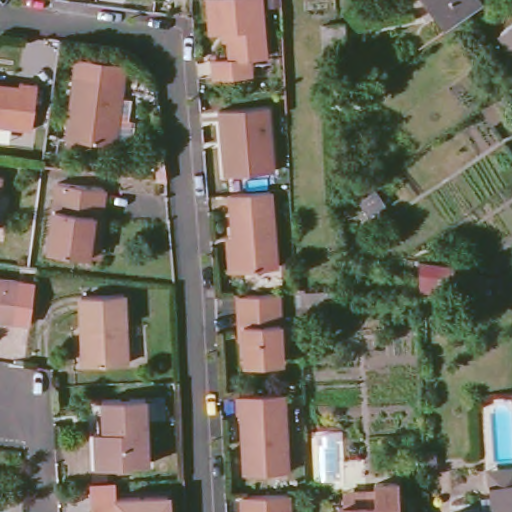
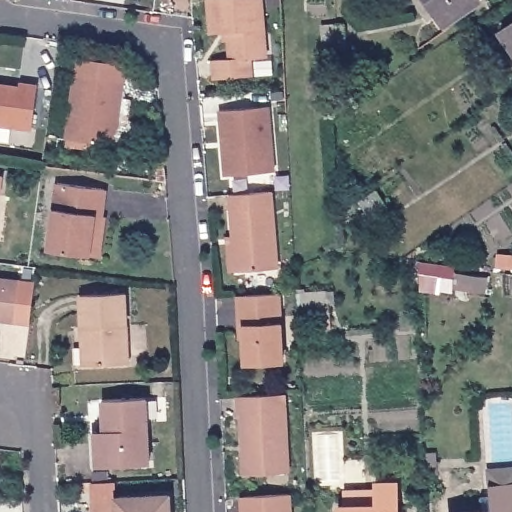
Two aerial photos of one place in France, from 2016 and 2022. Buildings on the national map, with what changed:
unchanged [(250,59),(252,77),(212,82),(210,62),(228,60),(226,31),(208,33),(205,0),(261,0),(267,58),(250,59)]
unchanged [(478,0),(440,26),(422,0),(478,0)]
unchanged [(336,42),(334,42),(333,24),(345,23),(347,56),(337,57),(336,42)]
unchanged [(512,24),(512,49),(500,32),(512,24)]
unchanged [(128,120),(135,120),(132,146),(117,144),(116,145),(67,138),(77,56),(123,62),(121,79),(125,80),(122,97),(131,98),(128,120)]
unchanged [(20,82),(36,84),(30,132),(0,129),(0,86),(18,88),(20,82)]
unchanged [(268,106),(272,170),(222,174),(220,151),(225,146),(223,127),(217,128),(217,109),(268,106)]
unchanged [(45,149),(47,134),(60,136),(58,151),(45,149)]
unchanged [(4,174),(2,193),(0,193),(0,174),(4,174)]
unchanged [(95,259),(85,257),(45,251),(56,186),(102,192),(100,218),(102,218),(95,259)]
unchanged [(225,234),(232,233),(230,194),(237,193),(270,190),(277,265),(235,268),(227,268),(225,234)]
unchanged [(360,201),(377,191),(385,204),(369,214),(360,201)]
unchanged [(485,292),(463,289),(452,288),(455,271),(465,273),(487,276),(485,292)]
unchanged [(12,281),(27,283),(22,323),(0,320),(0,279),(12,281)]
unchanged [(79,327),(77,295),(122,293),(125,363),(88,364),(81,364),(79,327)]
unchanged [(278,293),(283,358),(245,361),(243,324),(239,324),(237,295),(278,293)]
unchanged [(292,473),(247,475),(245,455),(249,452),(248,445),(245,446),(244,415),(239,415),(240,398),(289,395),(292,473)]
unchanged [(92,431),(101,430),(100,399),(144,398),(146,464),(93,466),(92,431)]
unchanged [(478,511),(477,497),(487,496),(485,485),(484,469),(512,467),(512,512),(466,512),(478,511)]
unchanged [(396,482),(397,512),(339,512),(338,506),(345,506),(344,491),(347,491),(375,490),(375,483),(396,482)]
unchanged [(240,510),(245,510),(243,493),(290,490),(291,512),(240,512),(240,510)]
unchanged [(95,497),(170,495),(171,512),(95,512),(95,497)]

